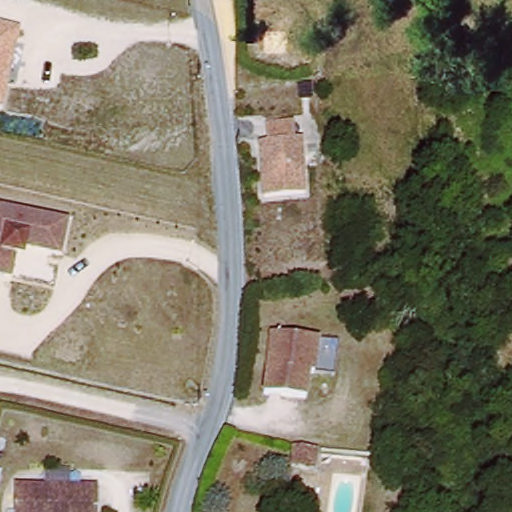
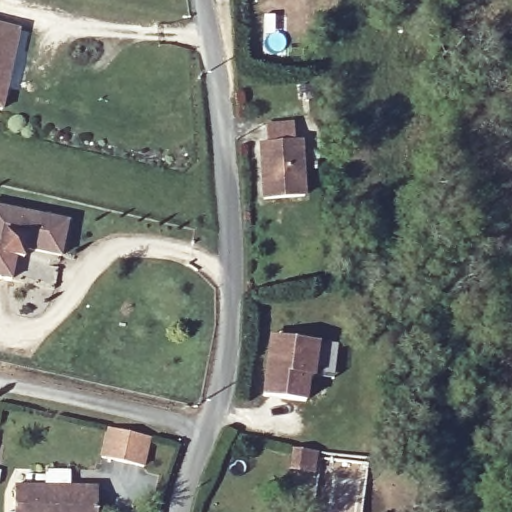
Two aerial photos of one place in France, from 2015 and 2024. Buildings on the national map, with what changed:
unchanged [(5,108),(0,107),(0,25),(18,29),(5,108)]
unchanged [(293,147),(296,204),(256,206),(254,151),(293,147)]
unchanged [(60,256),(28,250),(25,264),(15,261),(11,281),(0,279),(0,205),(67,221),(60,256)]
unchanged [(303,407),(258,397),(272,338),(318,349),(337,353),(330,385),(312,381),(307,380),(303,407)]
new [(152,437),(145,467),(101,458),(108,428),(152,437)]
unchanged [(303,459),(298,481),(276,476),(281,453),(303,459)]
unchanged [(20,494),(100,493),(100,512),(20,512),(20,494)]

